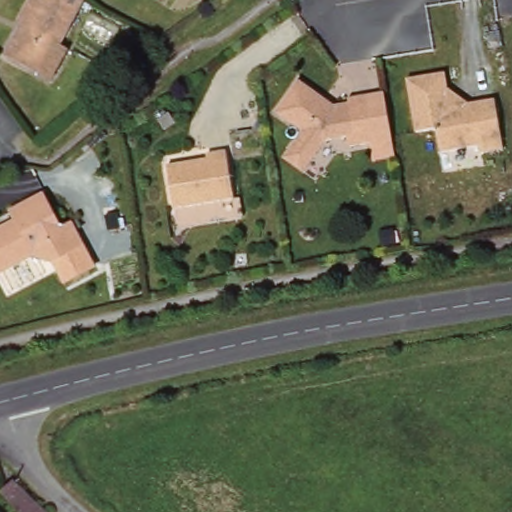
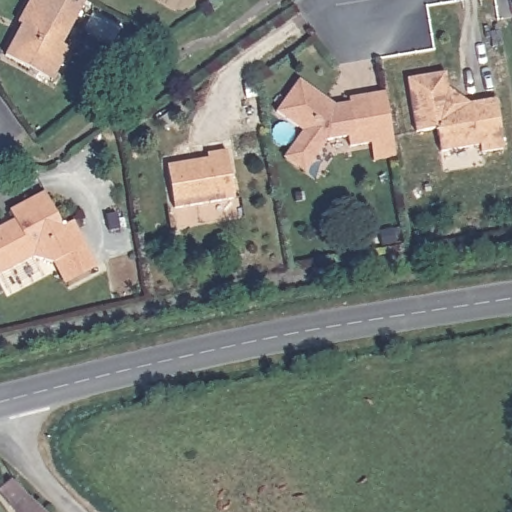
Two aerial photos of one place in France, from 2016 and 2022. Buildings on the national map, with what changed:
unchanged [(2,53),(16,26),(12,24),(25,0),(82,0),(57,42),(65,49),(56,65),(49,79),(24,65),(2,53)]
unchanged [(500,137),(477,141),(476,134),(436,140),(433,116),(411,120),(404,66),(442,60),(445,79),(463,92),(493,87),(500,137)]
unchanged [(286,156),(296,142),(306,130),(279,110),(303,79),(325,98),(334,106),(350,104),(349,99),(370,96),(386,94),(387,102),(394,149),(396,158),(374,161),(371,144),(348,147),(347,138),(326,141),(316,156),(307,170),(286,156)]
unchanged [(212,156),(212,150),(230,149),(236,196),(174,204),(169,161),(212,156)]
unchanged [(65,226),(75,219),(92,241),(63,263),(41,261),(10,285),(0,272),(0,242),(7,236),(17,229),(10,219),(42,195),(65,226)]
unchanged [(0,496),(0,484),(6,476),(43,512),(14,512),(0,496)]

